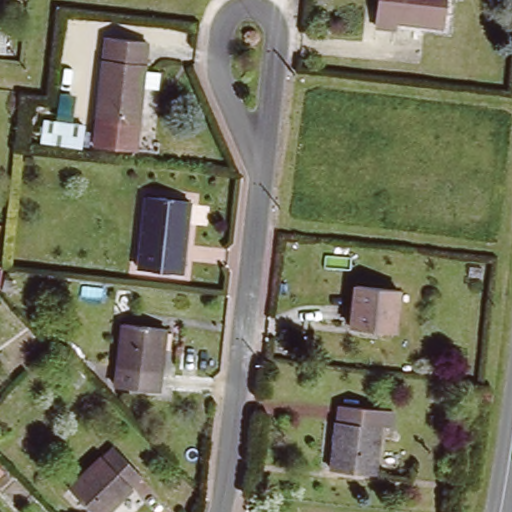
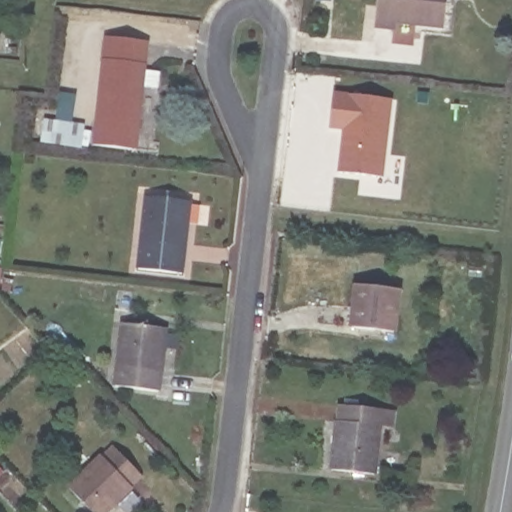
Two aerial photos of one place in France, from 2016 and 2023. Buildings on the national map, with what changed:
unchanged [(444,0),(440,31),(395,24),(393,35),(375,32),(380,0),(444,0)]
unchanged [(105,38),(147,40),(142,123),(137,122),(93,119),(105,38)]
new [(332,92),(390,97),(382,176),(338,171),(342,128),(328,127),(332,92)]
unchanged [(137,122),(135,152),(91,147),(93,119),(137,122)]
unchanged [(147,196),(190,201),(182,271),(140,267),(147,196)]
unchanged [(393,291),(388,330),(348,326),(353,286),(393,291)]
unchanged [(125,326),(165,331),(158,391),(117,386),(125,326)]
unchanged [(332,402),(383,408),(380,430),(371,428),(364,474),(322,467),(332,402)]
unchanged [(113,449),(143,481),(110,512),(92,512),(71,490),(113,449)]

